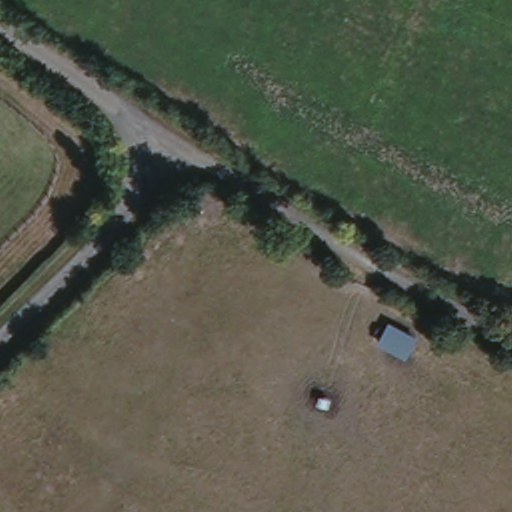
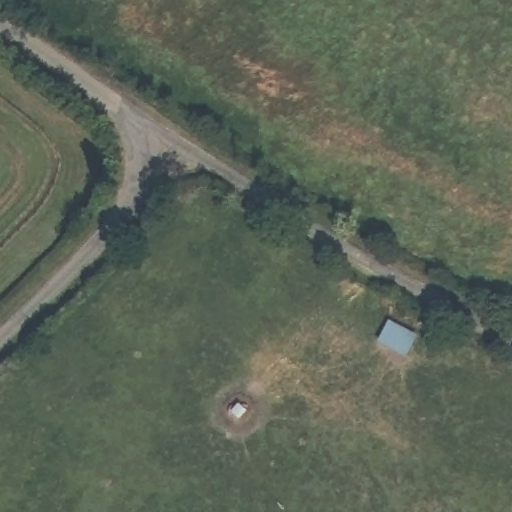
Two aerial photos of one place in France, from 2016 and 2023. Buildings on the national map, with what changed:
unchanged [(388,319),(417,335),(407,356),(376,340),(388,319)]

